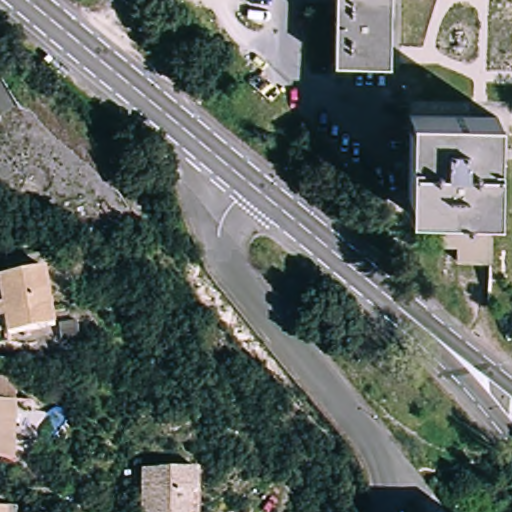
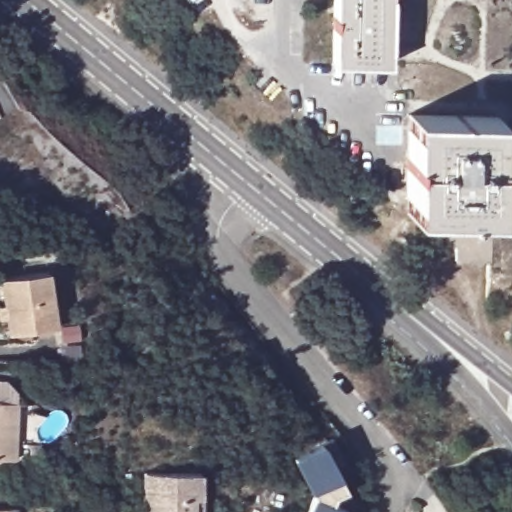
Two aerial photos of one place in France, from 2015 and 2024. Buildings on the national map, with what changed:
unchanged [(387,58),(333,57),(334,0),(388,0),(387,58)]
unchanged [(494,213),(406,211),(409,114),(496,116),(494,213)]
unchanged [(494,227),(493,264),(458,263),(458,248),(438,247),(439,226),(494,227)]
unchanged [(61,322),(13,330),(4,274),(51,266),(61,322)]
unchanged [(9,454),(0,454),(0,397),(11,397),(9,454)]
new [(298,456),(325,443),(349,494),(345,497),(346,500),(341,511),(342,512),(314,512),(318,502),(298,456)]
unchanged [(143,512),(143,467),(199,467),(199,490),(191,491),(191,512),(143,512)]
unchanged [(12,503),(12,512),(0,512),(0,504),(12,503)]

